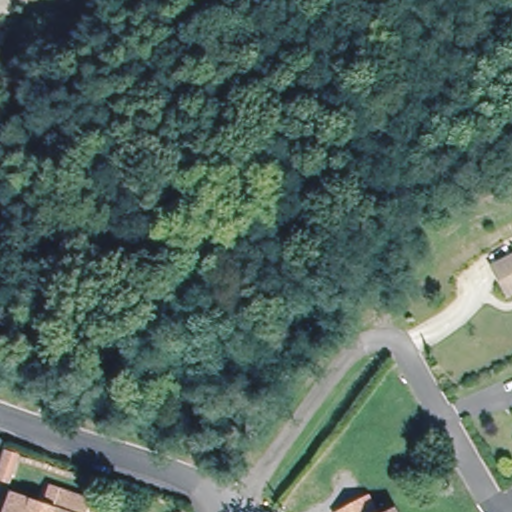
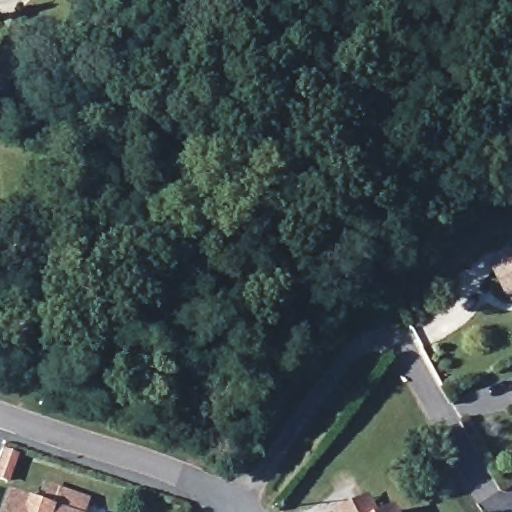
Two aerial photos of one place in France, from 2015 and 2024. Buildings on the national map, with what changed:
unchanged [(506,275),(497,260),(512,252),(512,287),(506,275)]
unchanged [(22,452),(12,477),(2,473),(11,448),(22,452)]
unchanged [(42,493),(82,507),(80,512),(36,512),(42,493)]
unchanged [(34,512),(4,512),(7,502),(34,512)]

